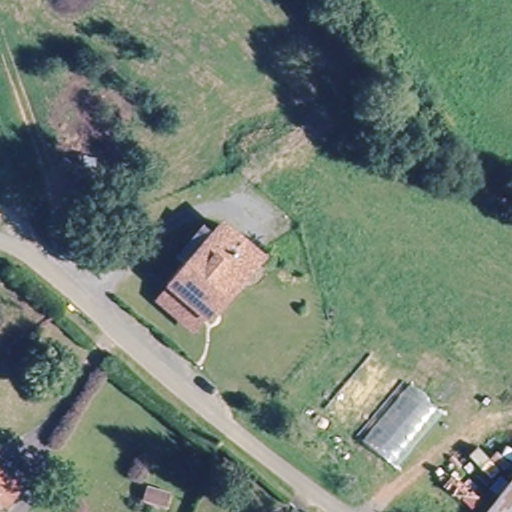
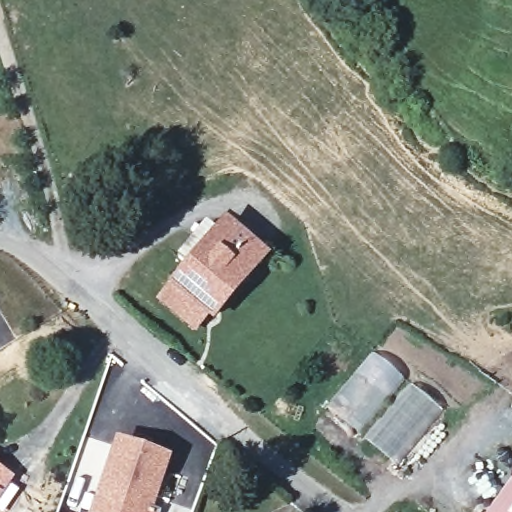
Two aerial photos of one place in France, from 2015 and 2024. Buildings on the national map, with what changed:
unchanged [(161,309),(172,296),(184,282),(175,273),(202,239),(213,247),(221,237),(260,267),(242,289),(236,285),(205,322),(194,336),(161,309)]
new [(171,458),(155,512),(91,512),(115,441),(171,458)]
unchanged [(7,510),(0,504),(0,475),(7,481),(21,491),(7,510)]
unchanged [(512,486),(512,512),(490,512),(512,486)]

